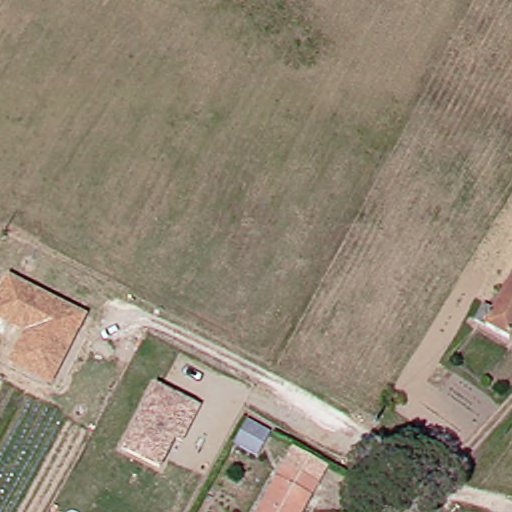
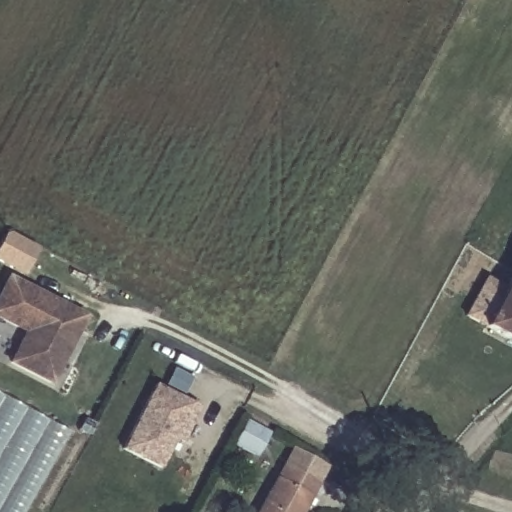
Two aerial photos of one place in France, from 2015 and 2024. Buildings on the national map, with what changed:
new [(2,237),(8,235),(32,249),(19,275),(0,265),(0,241),(2,237)]
unchanged [(475,315),(485,294),(497,300),(512,272),(512,332),(511,333),(475,315)]
unchanged [(85,315),(52,382),(12,362),(29,331),(0,317),(0,299),(10,278),(85,315)]
unchanged [(174,439),(159,467),(122,448),(156,384),(199,407),(191,423),(180,442),(174,439)]
new [(0,512),(0,392),(75,432),(30,512),(0,512)]
unchanged [(248,425),(271,439),(256,463),(232,448),(248,425)]
unchanged [(296,444),(330,463),(321,479),(303,512),(260,512),(287,461),(296,444)]
unchanged [(380,477),(383,471),(390,475),(386,481),(380,477)]

